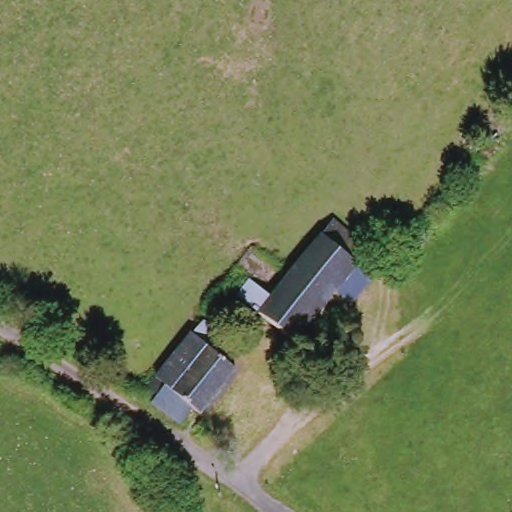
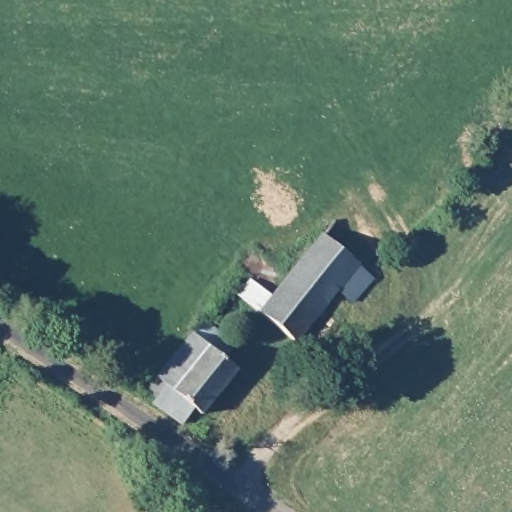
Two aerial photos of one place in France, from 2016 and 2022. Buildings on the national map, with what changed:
unchanged [(302,347),(245,302),(257,285),(277,301),(338,227),(374,256),(363,269),(377,282),(357,308),(342,297),(302,347)]
unchanged [(212,419),(204,414),(192,427),(164,407),(169,400),(160,393),(204,339),(215,325),(248,349),(236,365),(249,377),(212,419)]

